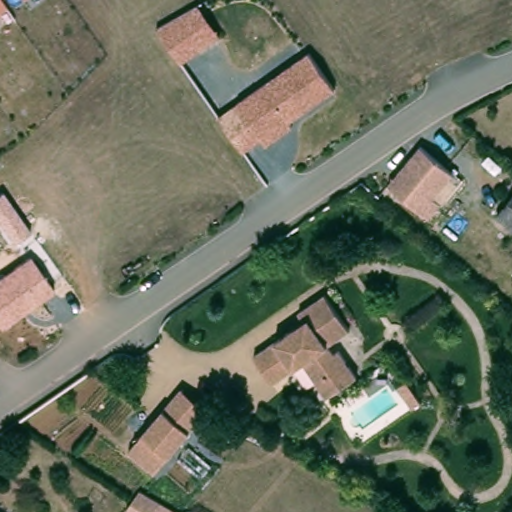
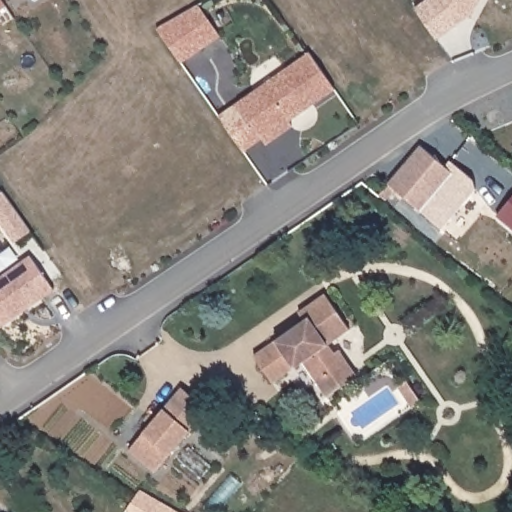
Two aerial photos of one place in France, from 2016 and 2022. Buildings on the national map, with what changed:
new [(468,17),(437,41),(414,8),(424,0),(483,0),(472,20),(468,17)]
unchanged [(5,9),(0,12),(0,2),(5,9)]
unchanged [(219,36),(180,62),(156,28),(198,3),(219,36)]
unchanged [(334,90),(289,122),(292,127),(265,146),(260,140),(241,153),(217,114),(309,51),(334,90)]
unchanged [(452,177),(433,199),(440,205),(427,219),(387,183),(420,149),(452,177)]
new [(20,224),(4,235),(0,230),(0,194),(20,224)]
unchanged [(512,199),(512,230),(496,218),(512,199)]
unchanged [(54,290),(0,328),(0,277),(30,256),(54,290)]
unchanged [(331,291),(356,325),(335,341),(341,349),(346,346),(365,371),(335,393),(310,359),(280,381),(261,355),(310,318),(305,310),(331,291)]
unchanged [(205,420),(158,484),(132,465),(180,401),(205,420)]

